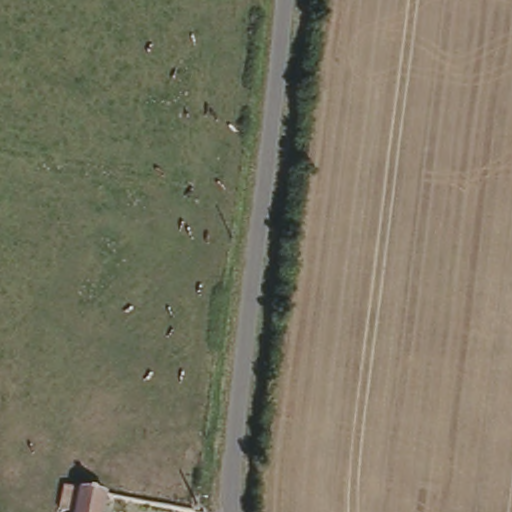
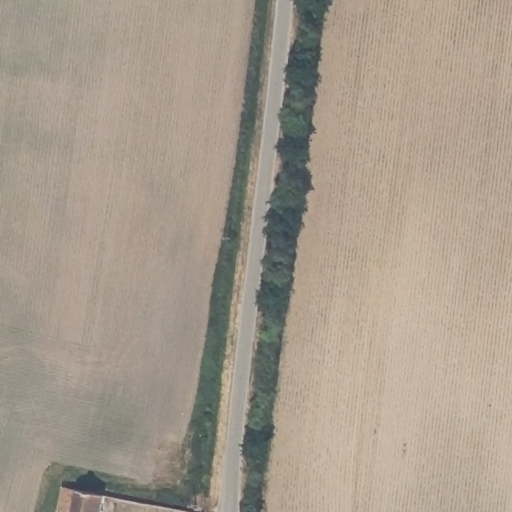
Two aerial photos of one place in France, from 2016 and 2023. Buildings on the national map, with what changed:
unchanged [(57,509),(61,482),(76,484),(104,487),(101,512),(74,512),(74,511),(57,509)]

